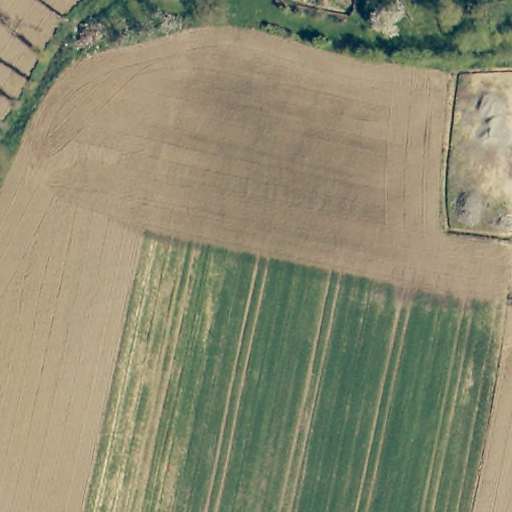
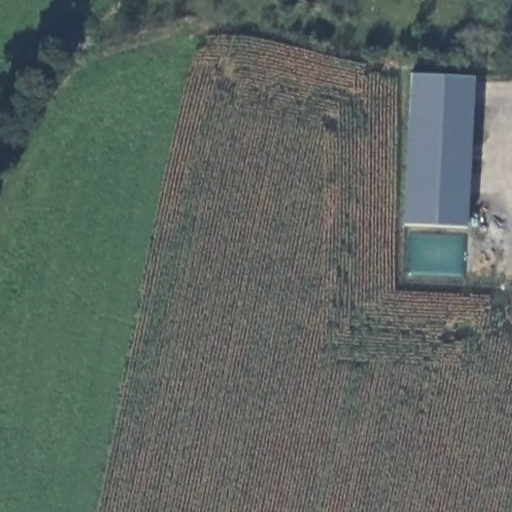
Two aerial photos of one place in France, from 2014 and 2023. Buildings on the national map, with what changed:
new [(409,75),(473,79),(467,229),(402,226),(409,75)]

